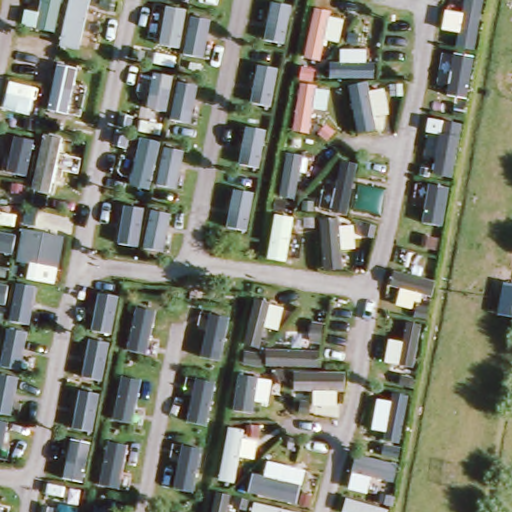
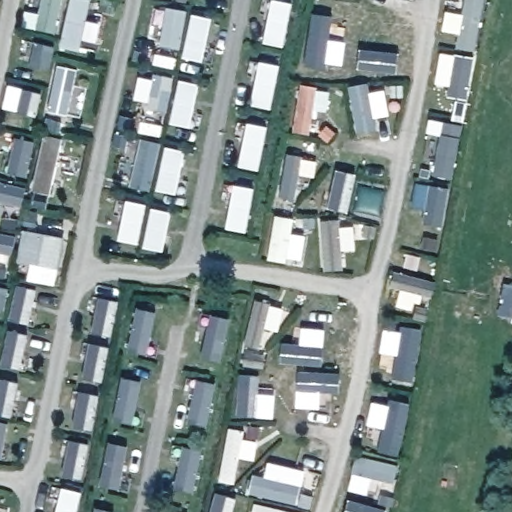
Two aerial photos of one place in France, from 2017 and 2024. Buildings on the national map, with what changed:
unchanged [(21,233),(63,240),(57,267),(16,261),(21,233)]

